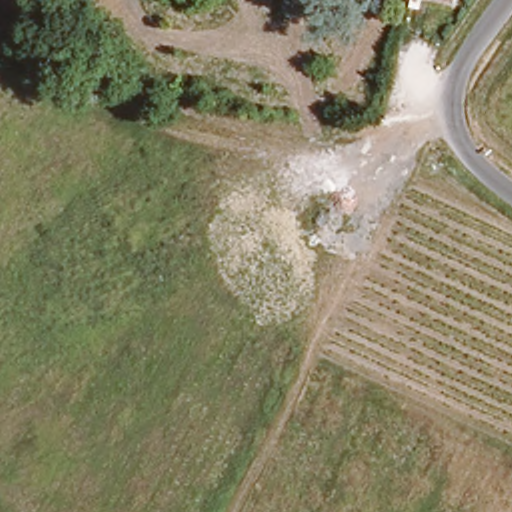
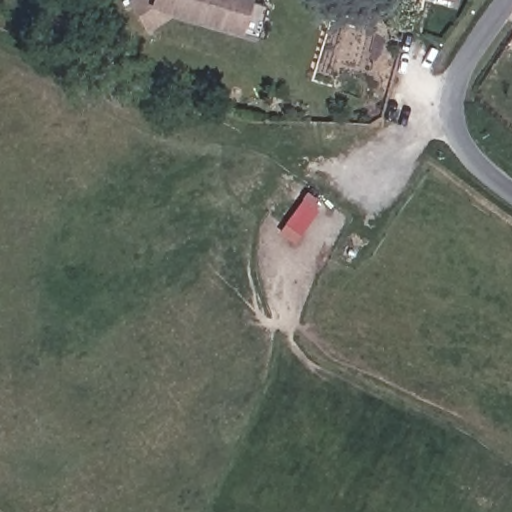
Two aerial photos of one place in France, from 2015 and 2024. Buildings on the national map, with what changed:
new [(173,16),(145,33),(126,1),(127,0),(250,0),(241,35),(173,16)]
unchanged [(430,0),(449,0),(447,5),(430,0)]

